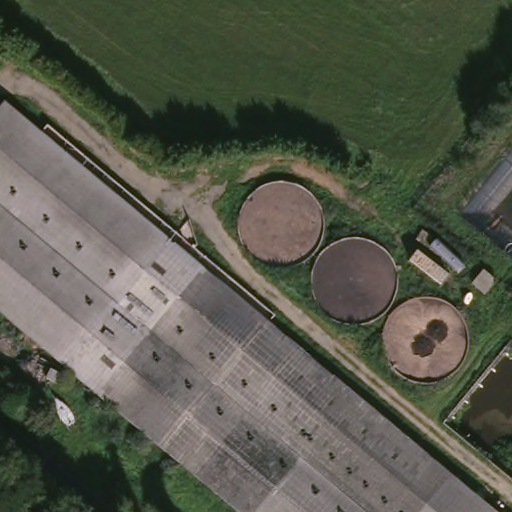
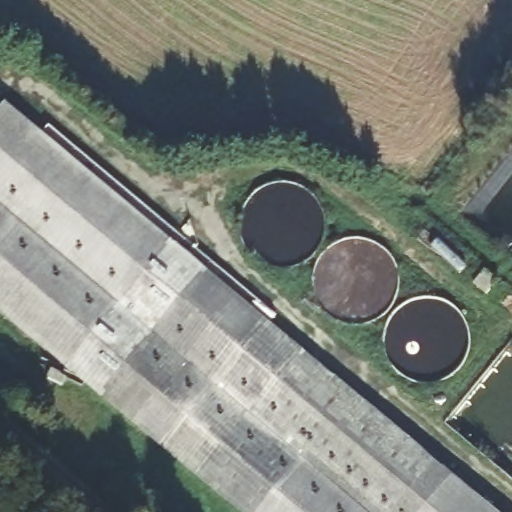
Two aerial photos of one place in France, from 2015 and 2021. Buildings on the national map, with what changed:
unchanged [(0,305),(0,113),(13,98),(511,512),(248,512),(0,305)]

